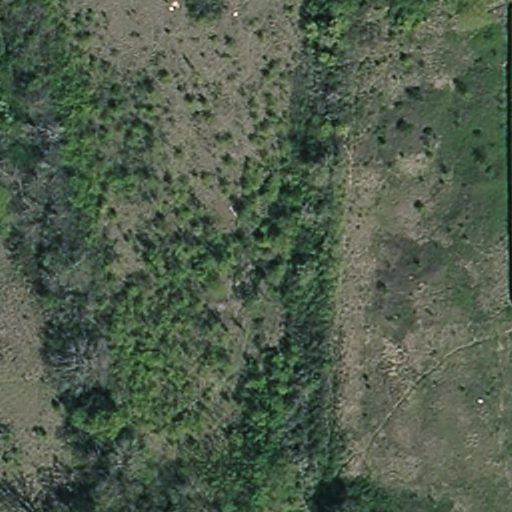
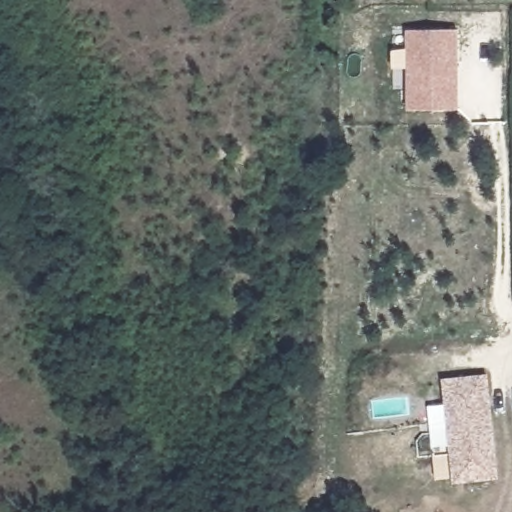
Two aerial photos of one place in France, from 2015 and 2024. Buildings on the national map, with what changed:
new [(407,30),(457,29),(458,109),(407,109),(407,30)]
new [(496,475),(453,481),(442,402),(439,379),(444,379),(482,374),(496,475)]

